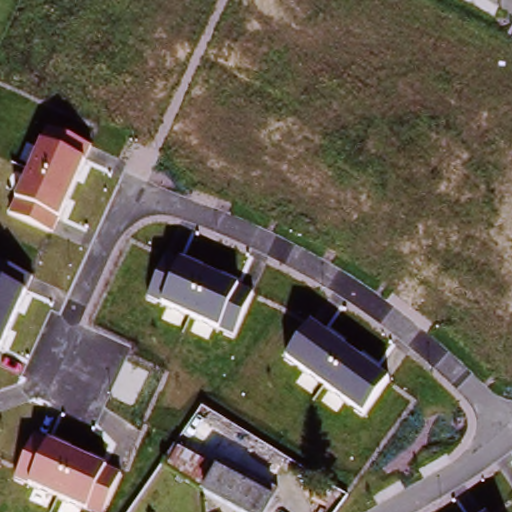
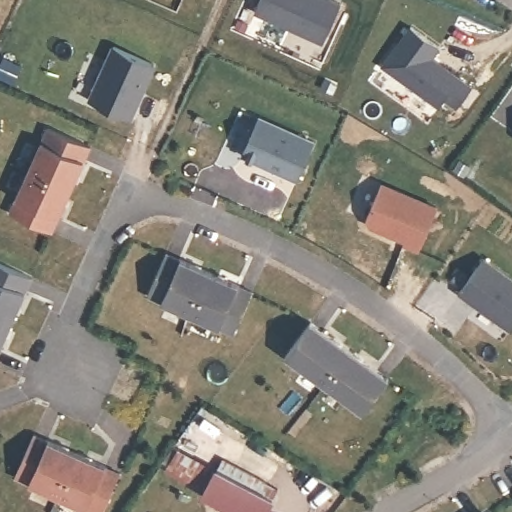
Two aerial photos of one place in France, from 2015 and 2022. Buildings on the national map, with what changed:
new [(322,45),(255,12),(261,0),(328,0),(342,6),(322,45)]
new [(443,48),(434,60),(474,88),(457,111),(444,102),(439,109),(381,67),(410,28),(443,48)]
new [(157,63),(133,119),(89,100),(113,45),(157,63)]
new [(258,113),(312,137),(296,175),(242,151),(258,113)]
unchanged [(9,213),(48,124),(90,143),(54,233),(9,213)]
new [(439,207),(422,254),(403,247),(405,243),(370,230),(366,222),(382,183),(439,207)]
unchanged [(145,298),(165,255),(252,295),(235,334),(145,298)]
new [(512,277),(512,333),(459,294),(484,256),(512,277)]
unchanged [(0,347),(0,264),(30,278),(0,347)]
unchanged [(285,358),(312,323),(388,378),(364,413),(285,358)]
unchanged [(15,478),(37,432),(118,474),(102,512),(87,512),(15,478)]
unchanged [(268,512),(232,512),(207,497),(220,472),(273,503),(268,512)]

